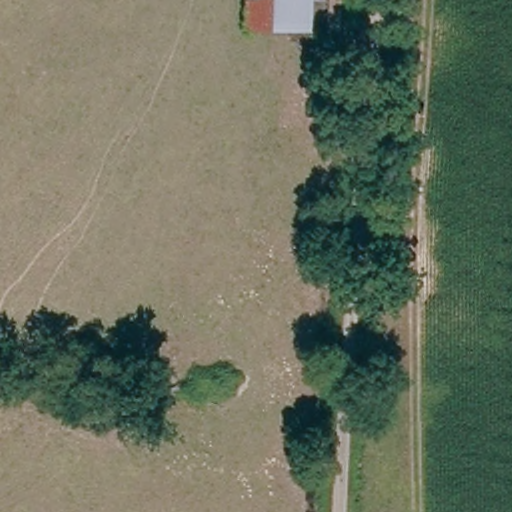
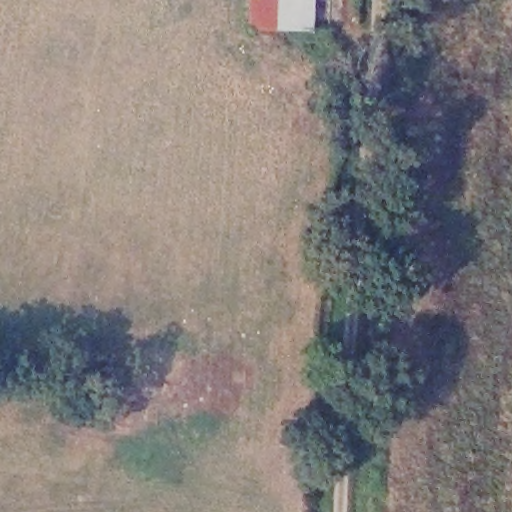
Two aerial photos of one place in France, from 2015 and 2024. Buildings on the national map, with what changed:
unchanged [(314,26),(252,25),(250,25),(250,0),(314,0),(314,26)]

